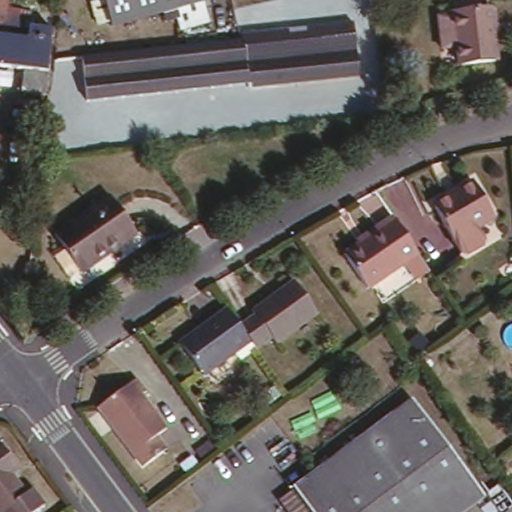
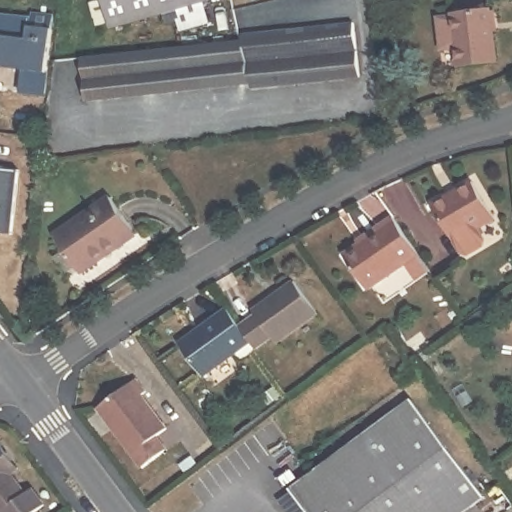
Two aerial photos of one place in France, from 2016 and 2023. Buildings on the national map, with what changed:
unchanged [(0,33),(0,0),(10,0),(10,8),(31,9),(30,24),(28,35),(0,33)]
unchanged [(101,0),(176,0),(107,20),(101,0)]
unchanged [(455,20),(453,5),(486,3),(487,18),(490,18),(493,58),(442,62),(437,23),(455,20)]
unchanged [(244,36),(243,31),(352,18),(358,71),(245,84),(244,77),(82,99),(79,57),(235,37),(244,36)]
unchanged [(28,35),(30,24),(54,27),(50,70),(47,91),(25,91),(27,66),(0,64),(0,33),(28,35)]
new [(17,170),(12,231),(0,230),(0,168),(17,170)]
unchanged [(486,209),(463,215),(467,228),(463,234),(447,239),(441,235),(432,199),(430,191),(457,184),(477,177),(486,209)]
unchanged [(111,194),(134,227),(78,267),(55,232),(111,194)]
unchanged [(343,250),(357,240),(352,235),(373,221),(390,210),(415,244),(363,280),(343,250)]
unchanged [(251,308),(249,305),(288,275),(311,309),(251,353),(242,342),(229,324),(251,308)]
unchanged [(201,374),(177,340),(220,312),(229,324),(242,342),(201,374)]
unchanged [(131,371),(165,418),(149,430),(159,442),(136,459),(92,401),(131,371)]
unchanged [(287,508),(300,497),(293,487),(413,394),(485,491),(456,512),(290,512),(287,508)]
unchanged [(7,454),(17,467),(10,472),(21,487),(32,480),(44,498),(23,512),(7,512),(2,506),(0,507),(0,444),(7,454)]

